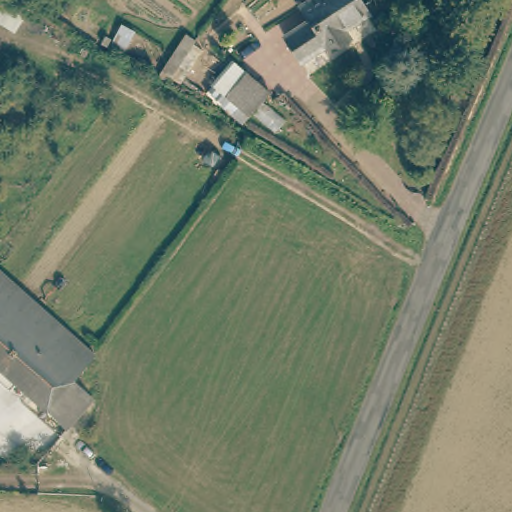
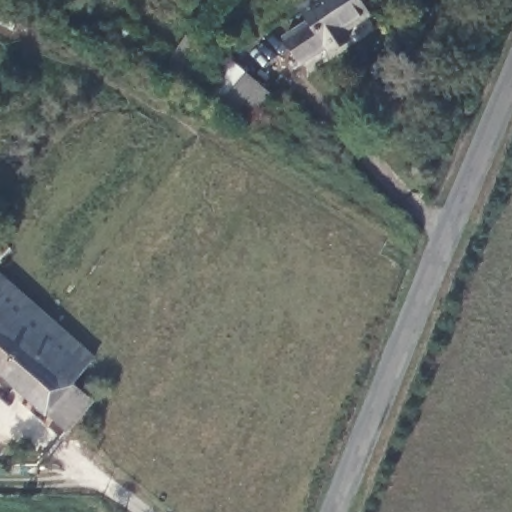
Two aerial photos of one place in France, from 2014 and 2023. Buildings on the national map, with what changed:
unchanged [(307,21),(299,8),(311,0),(354,0),(365,14),(341,32),(345,41),(328,52),(323,46),(298,65),(281,40),(307,21)]
unchanged [(167,79),(156,71),(174,45),(185,53),(167,79)]
unchanged [(240,125),(216,107),(222,97),(210,87),(215,80),(219,82),(222,77),(234,86),(242,75),(265,95),(240,125)]
unchanged [(0,268),(95,353),(75,380),(92,398),(70,429),(0,368),(0,268)]

